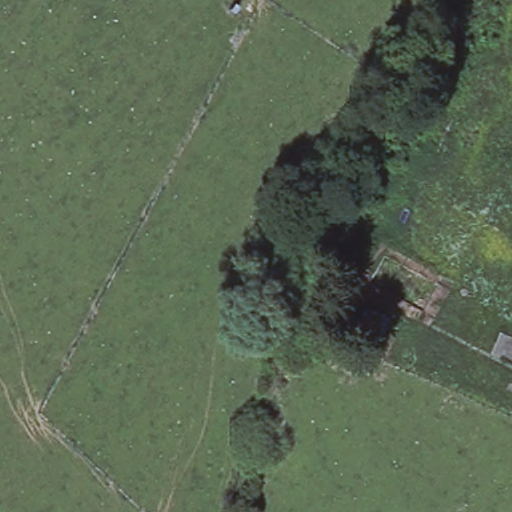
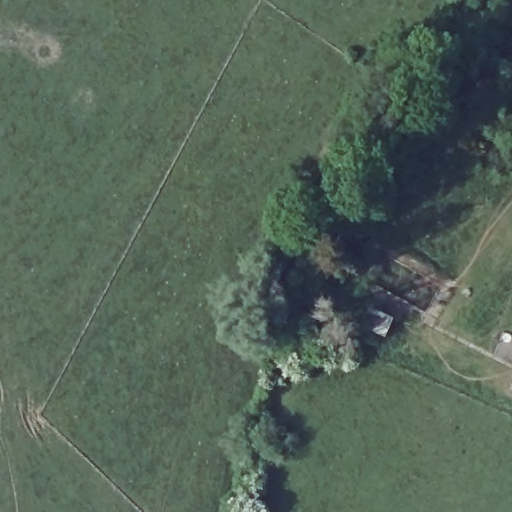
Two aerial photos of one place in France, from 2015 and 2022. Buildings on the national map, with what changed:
unchanged [(392,319),(384,336),(359,325),(367,307),(392,319)]

